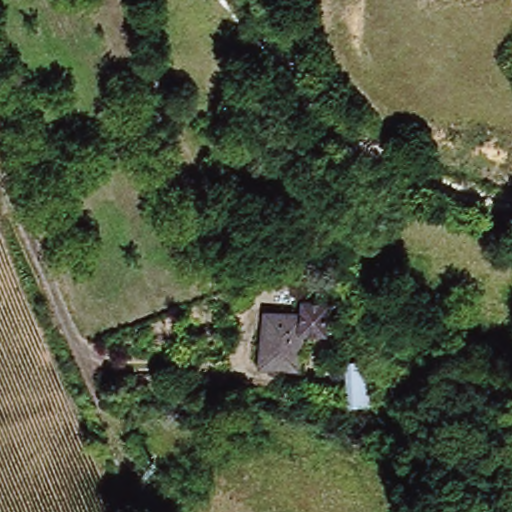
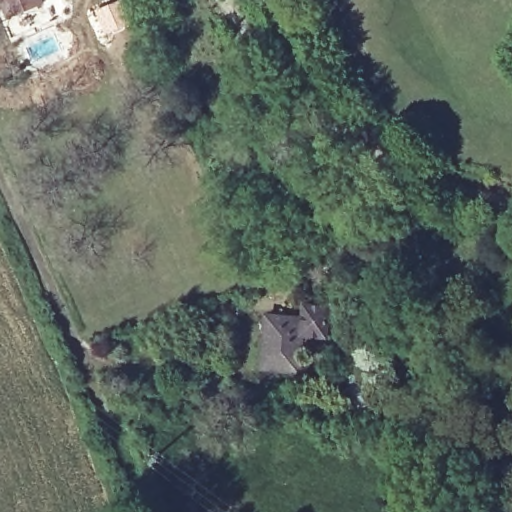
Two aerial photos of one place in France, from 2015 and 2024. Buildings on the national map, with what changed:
new [(42,3),(2,20),(0,15),(0,0),(41,0),(42,3)]
unchanged [(250,371),(258,314),(290,319),(292,304),(323,309),(319,342),(292,338),(287,375),(250,371)]

